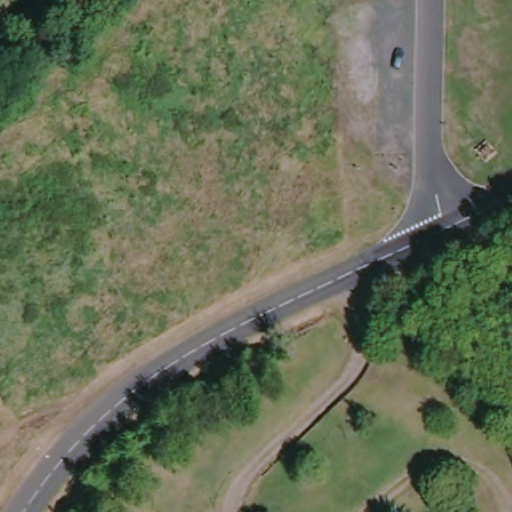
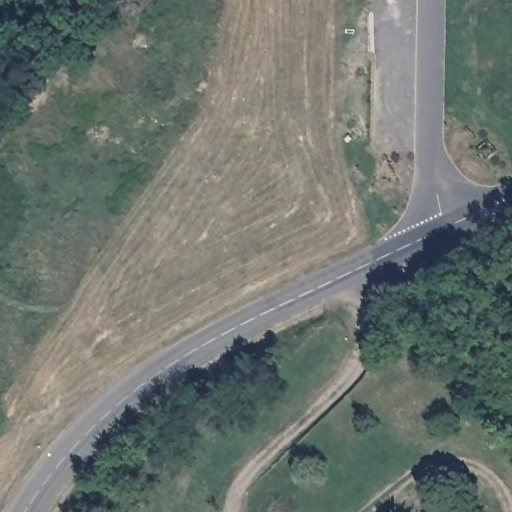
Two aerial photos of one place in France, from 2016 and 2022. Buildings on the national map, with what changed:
[]

